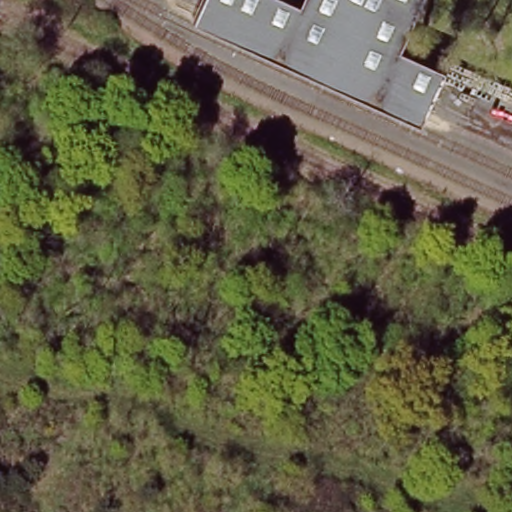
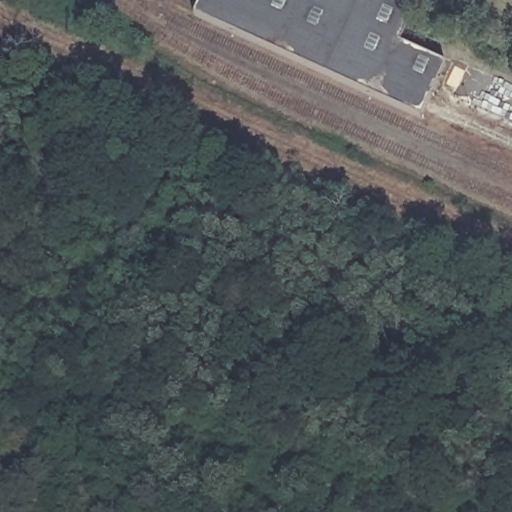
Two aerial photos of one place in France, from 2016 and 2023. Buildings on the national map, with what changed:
unchanged [(197,0),(284,0),(400,49),(446,67),(422,123),(188,22),(197,0)]
unchanged [(284,0),(419,0),(400,49),(284,0)]

